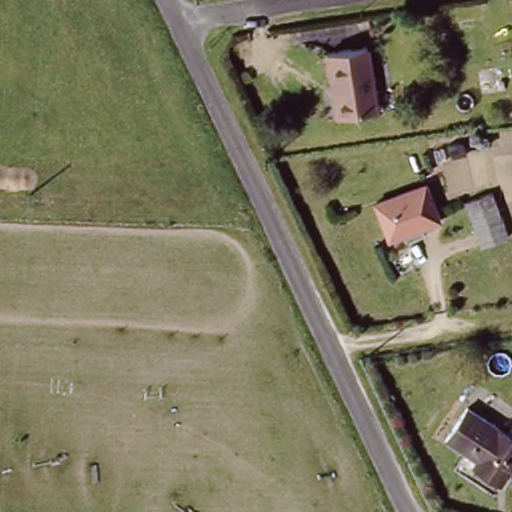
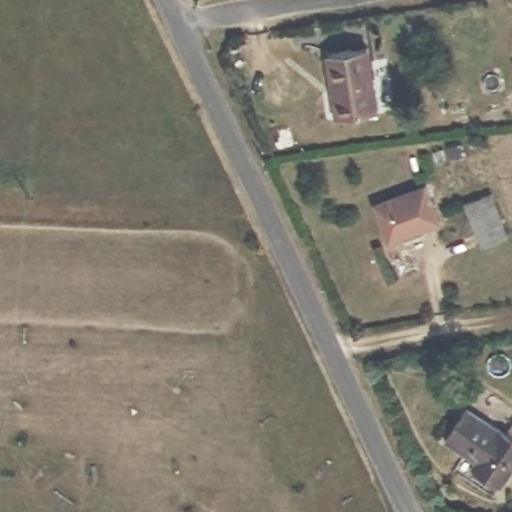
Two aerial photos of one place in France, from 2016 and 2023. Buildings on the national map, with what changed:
unchanged [(364,44),(376,106),(336,112),(322,50),(364,44)]
unchanged [(422,184),(434,223),(382,237),(370,198),(422,184)]
unchanged [(484,200),(497,246),(472,253),(459,206),(484,200)]
unchanged [(462,412),(512,436),(512,484),(510,487),(476,471),(480,463),(447,448),(462,412)]

